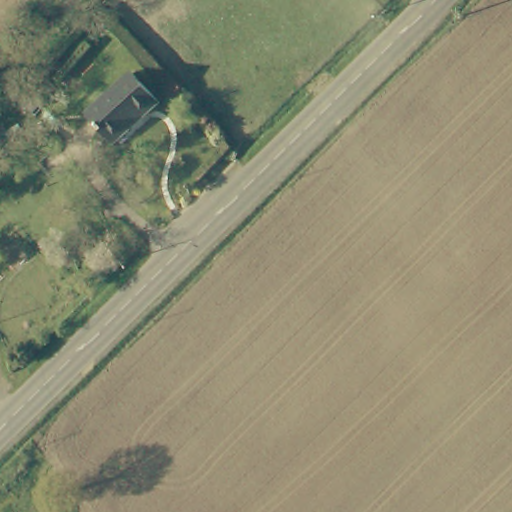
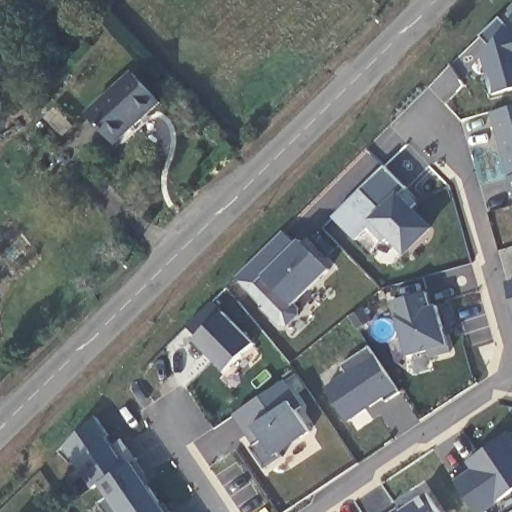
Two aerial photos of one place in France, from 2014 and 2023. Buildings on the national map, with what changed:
new [(512,89),(496,94),(490,73),(486,74),(482,56),(490,47),(480,36),(500,18),(510,28),(512,27),(512,89)]
unchanged [(133,76),(160,104),(115,146),(89,118),(133,76)]
new [(512,108),(512,192),(490,114),(512,108)]
new [(398,193),(432,229),(405,254),(388,238),(383,243),(369,228),(356,241),(332,217),(383,167),(404,188),(398,193)]
new [(281,232),(307,255),(310,251),(328,268),(295,304),(297,306),(300,309),(300,315),(296,319),(290,325),(285,325),(281,324),(265,307),(267,305),(237,277),(246,269),(281,232)]
new [(512,282),(512,298),(508,283),(512,282)]
new [(390,302),(425,293),(430,308),(435,306),(447,345),(448,352),(430,358),(428,350),(407,356),(394,316),(390,302)]
new [(252,343),(225,371),(194,340),(196,337),(186,327),(211,302),(221,312),(252,343)]
new [(367,347),(396,390),(346,422),(325,388),(346,373),(340,365),(367,347)]
new [(299,408),(294,411),(308,432),(277,453),(280,459),(263,471),(247,448),(253,444),(232,416),(281,382),(299,408)]
new [(100,484),(92,488),(64,445),(95,416),(108,435),(105,437),(125,466),(131,462),(166,512),(119,512),(100,484)]
new [(466,461),(510,435),(512,439),(512,491),(483,512),(475,512),(453,480),(470,470),(466,461)]
new [(398,508),(400,511),(425,495),(438,512),(392,512),(398,508)]

